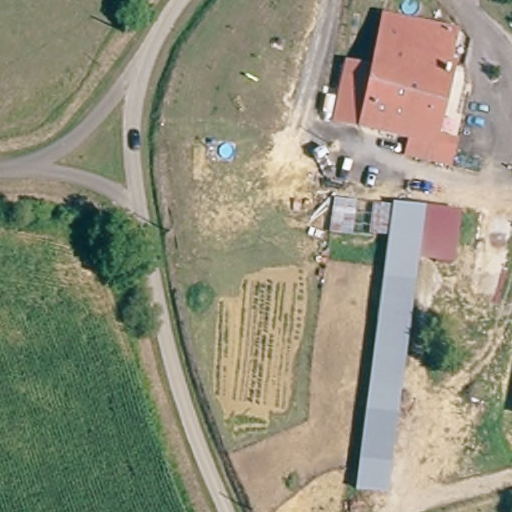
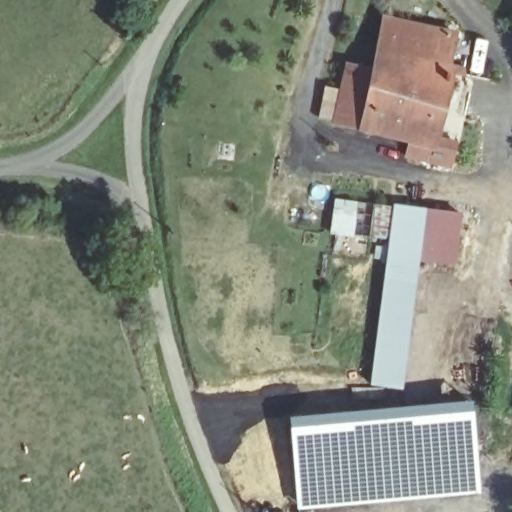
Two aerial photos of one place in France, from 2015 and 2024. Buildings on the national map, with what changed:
unchanged [(454,34),(447,65),(451,65),(435,139),(456,143),(451,165),(407,155),(411,140),(360,129),(335,124),(347,66),(372,72),(383,19),(454,34)]
unchanged [(395,206),(395,203),(463,210),(456,266),(420,260),(404,387),(372,382),(390,237),(374,235),(374,239),(332,234),(336,199),(395,206)]
new [(382,405),(472,398),(472,406),(389,415),(332,416),(288,423),(287,414),(382,405)]
new [(332,416),(389,415),(472,406),(480,492),(296,510),(288,423),(332,416)]

